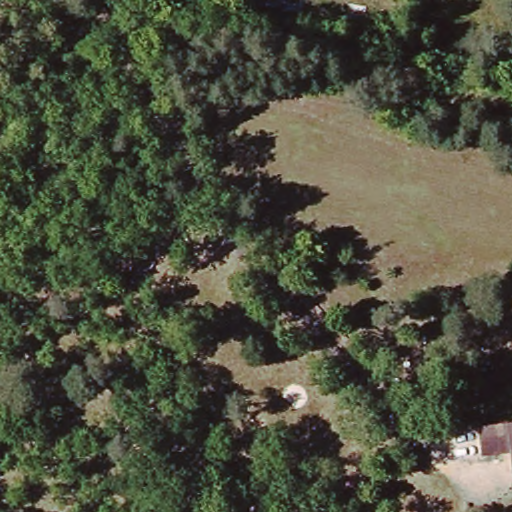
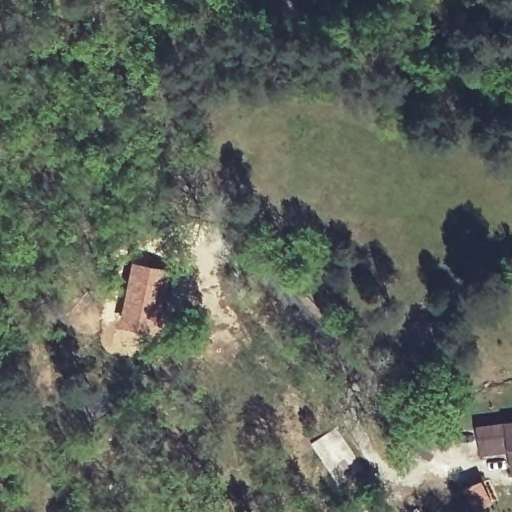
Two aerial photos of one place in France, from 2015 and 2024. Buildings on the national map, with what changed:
new [(135,261),(172,269),(160,335),(122,327),(135,261)]
unchanged [(512,425),(512,473),(508,451),(479,455),(475,430),(512,425)]

